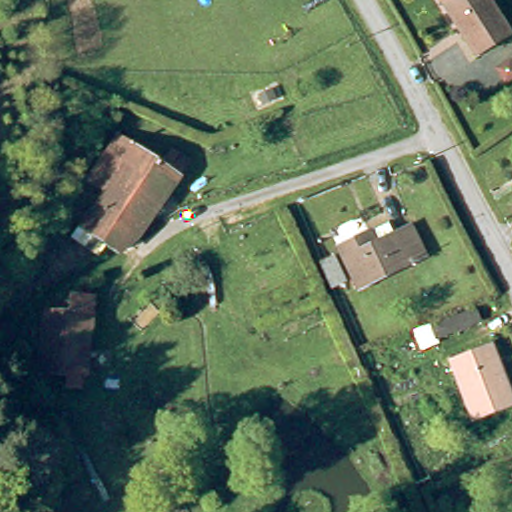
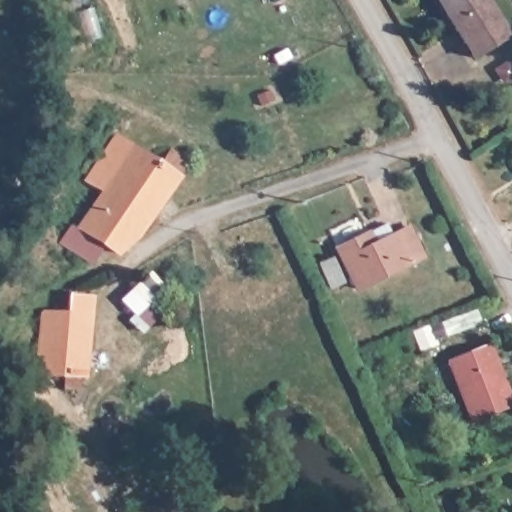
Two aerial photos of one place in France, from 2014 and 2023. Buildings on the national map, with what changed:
unchanged [(512,29),(512,44),(482,64),(445,1),(447,0),(493,0),(512,29)]
unchanged [(512,69),(512,85),(505,75),(512,69)]
unchanged [(105,198),(87,187),(107,155),(120,141),(161,167),(172,152),(188,162),(178,179),(183,182),(130,258),(85,228),(105,198)]
unchanged [(421,246),(361,284),(337,245),(383,216),(391,226),(405,218),(421,246)]
unchanged [(65,312),(80,317),(93,302),(107,302),(95,384),(50,379),(60,319),(65,312)]
unchanged [(480,330),(488,344),(464,357),(455,343),(480,330)]
unchanged [(512,411),(489,423),(460,370),(499,349),(512,376),(512,411)]

